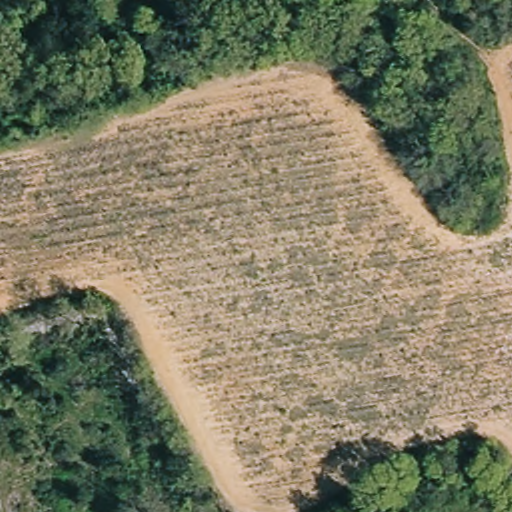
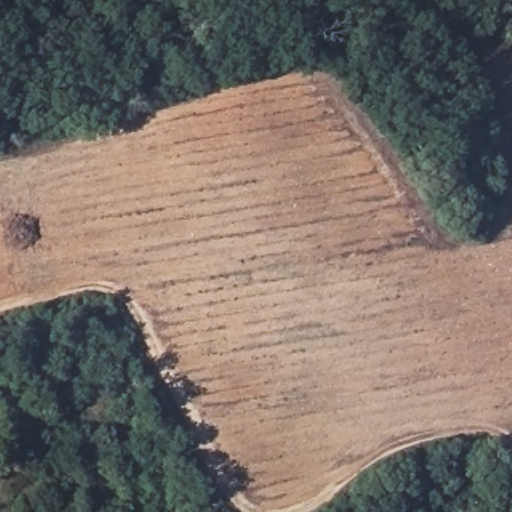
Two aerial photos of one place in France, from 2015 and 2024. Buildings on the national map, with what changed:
[]

